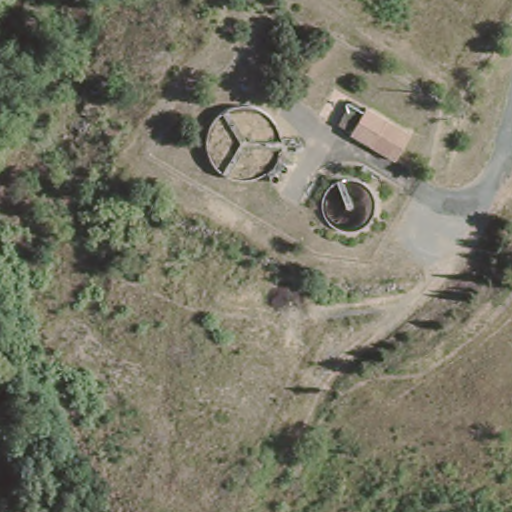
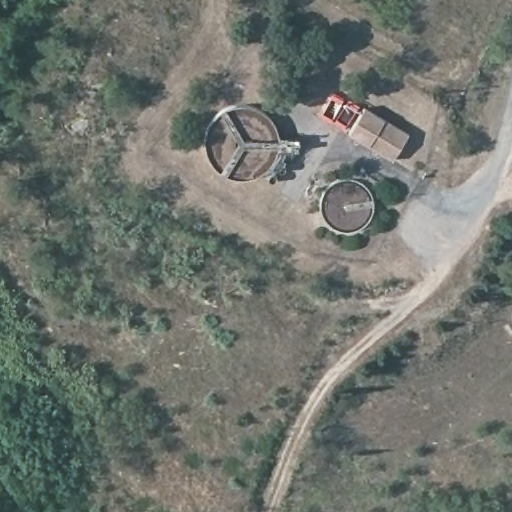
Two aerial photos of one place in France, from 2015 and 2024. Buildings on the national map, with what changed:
unchanged [(412,132),(397,158),(350,131),(367,105),(412,132)]

